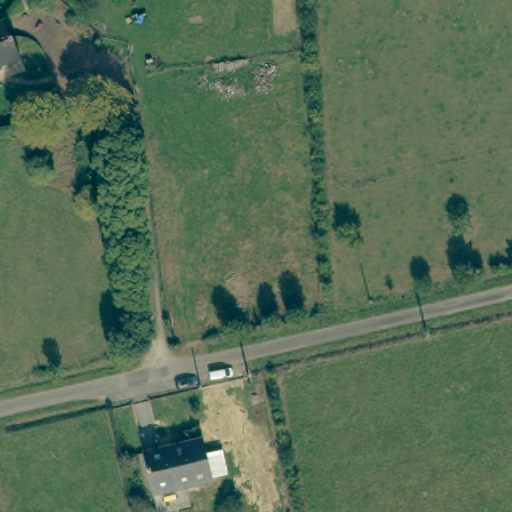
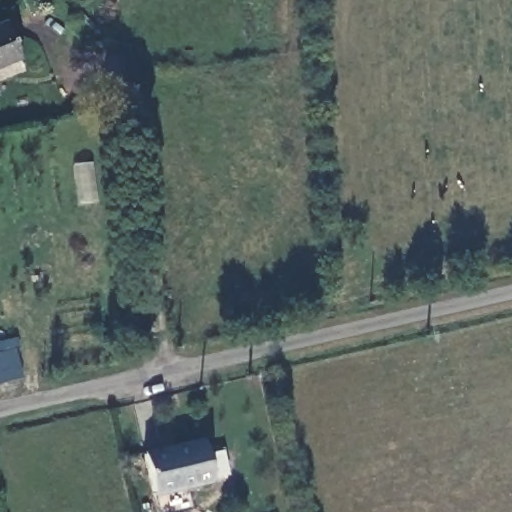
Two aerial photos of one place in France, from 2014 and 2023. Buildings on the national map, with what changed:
unchanged [(1,20),(17,56),(0,63),(0,20),(1,20)]
new [(15,350),(22,377),(0,382),(0,353),(15,350)]
unchanged [(210,443),(217,483),(157,495),(150,453),(210,443)]

